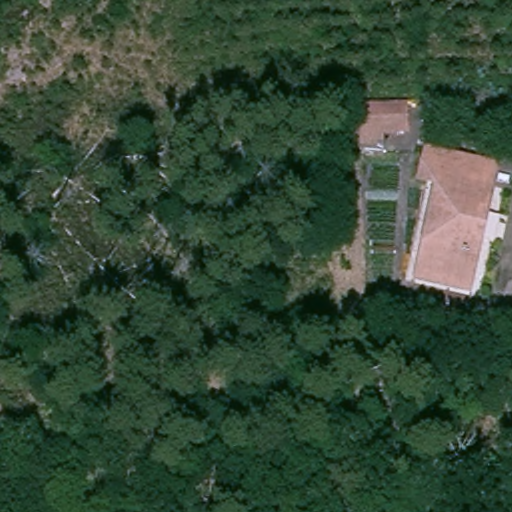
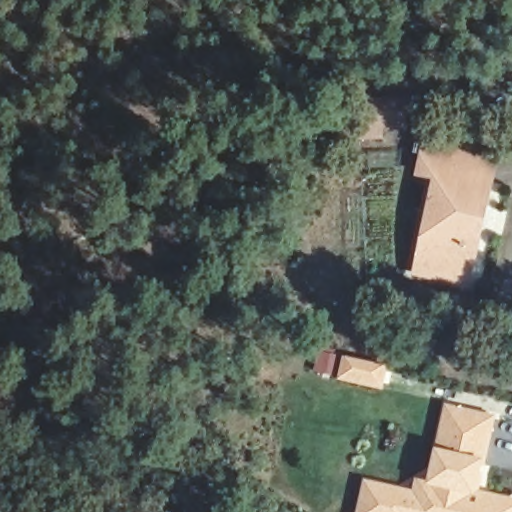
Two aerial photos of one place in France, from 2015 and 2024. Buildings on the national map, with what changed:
unchanged [(381,124),(380,138),(360,137),(363,98),(376,99),(384,99),(405,100),(402,124),(381,124)]
unchanged [(483,153),(482,175),(495,178),(491,202),(484,201),(481,232),(486,234),(477,276),(420,269),(432,175),(415,173),(419,145),(483,153)]
new [(365,481),(413,491),(416,479),(430,481),(446,405),(497,416),(480,492),(512,500),(512,512),(358,512),(365,481)]

